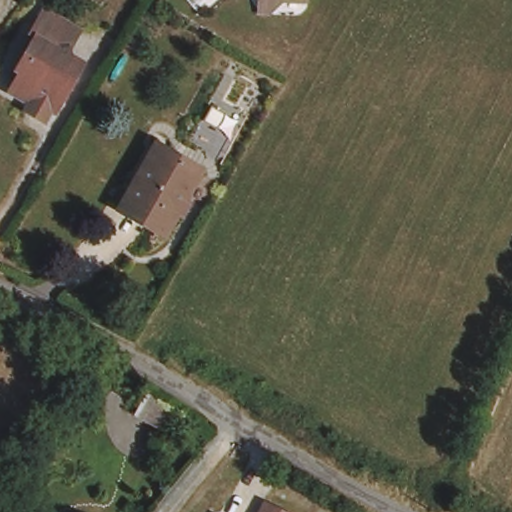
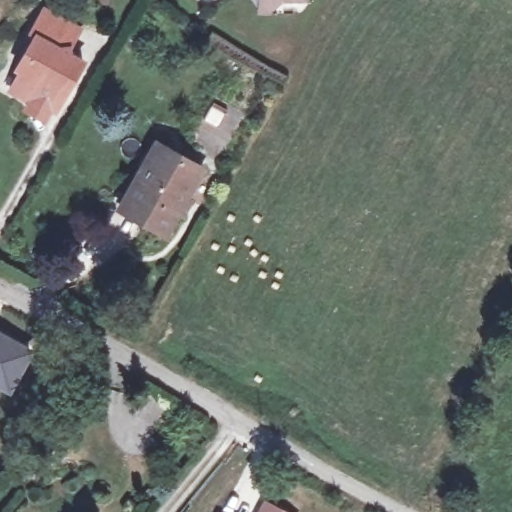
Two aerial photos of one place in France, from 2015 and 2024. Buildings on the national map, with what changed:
unchanged [(264,5),(264,0),(280,0),(275,5),(264,5)]
unchanged [(32,98),(10,87),(22,67),(16,63),(35,31),(31,29),(44,7),(79,27),(68,46),(69,50),(84,58),(69,84),(63,96),(59,93),(50,106),(45,117),(27,106),(32,98)]
unchanged [(125,202),(130,193),(157,147),(197,171),(161,234),(142,223),(120,210),(125,202)]
new [(9,395),(0,390),(0,329),(34,350),(9,395)]
unchanged [(177,413),(167,430),(142,416),(152,399),(177,413)]
unchanged [(284,512),(257,512),(262,501),(284,512)]

